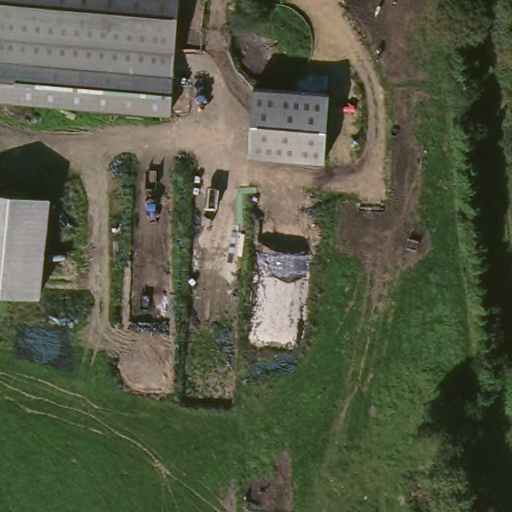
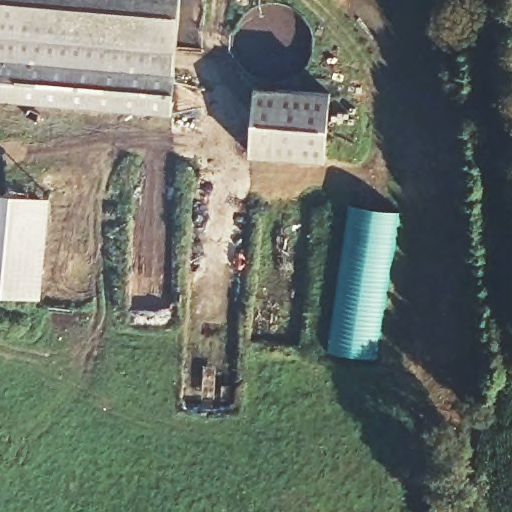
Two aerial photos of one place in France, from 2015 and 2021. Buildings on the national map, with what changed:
unchanged [(0,58),(0,0),(182,0),(176,74),(0,58)]
unchanged [(180,108),(0,95),(0,58),(176,74),(180,108)]
unchanged [(340,84),(337,156),(253,150),(260,78),(340,84)]
unchanged [(52,192),(42,295),(0,293),(0,189),(52,192)]
new [(353,204),(395,213),(371,359),(332,352),(353,204)]

